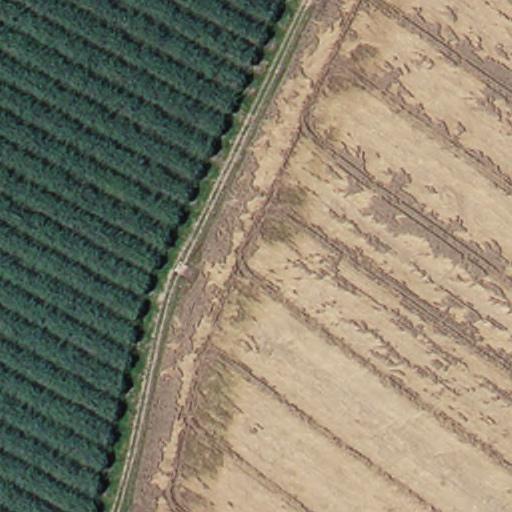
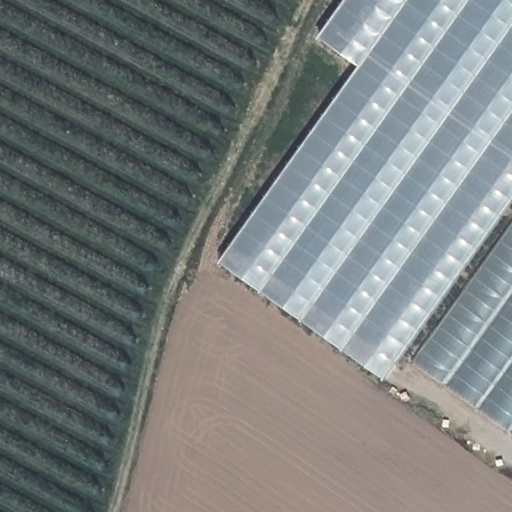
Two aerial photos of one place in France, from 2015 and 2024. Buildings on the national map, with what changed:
new [(361,69),(321,39),(349,0),(512,0),(512,203),(384,381),(222,263),(361,69)]
new [(512,226),(512,431),(414,361),(512,226)]

